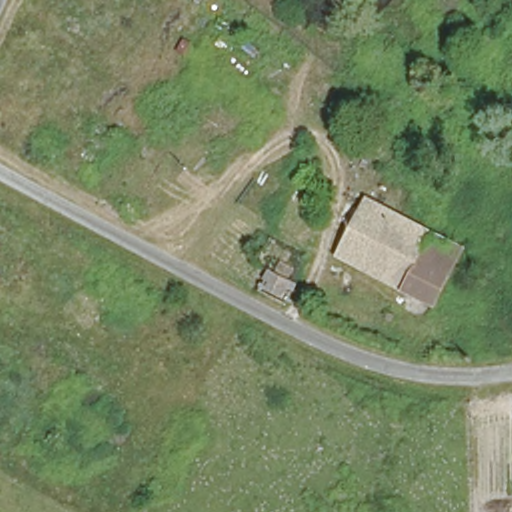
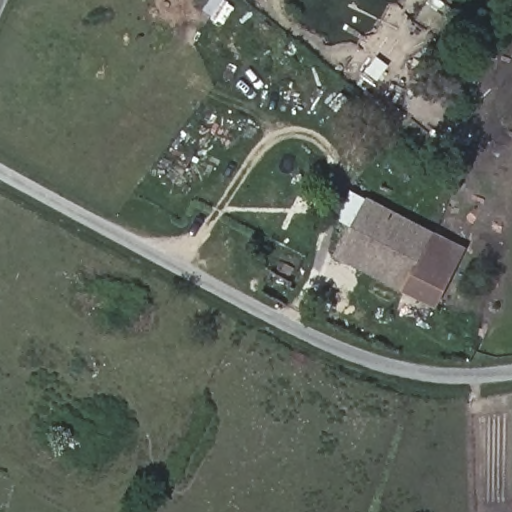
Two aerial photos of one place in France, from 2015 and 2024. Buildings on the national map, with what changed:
unchanged [(369,269),(343,255),(371,203),(398,217),(369,269)]
unchanged [(466,253),(436,305),(369,269),(398,217),(466,253)]
unchanged [(257,288),(268,266),(296,280),(285,304),(257,288)]

